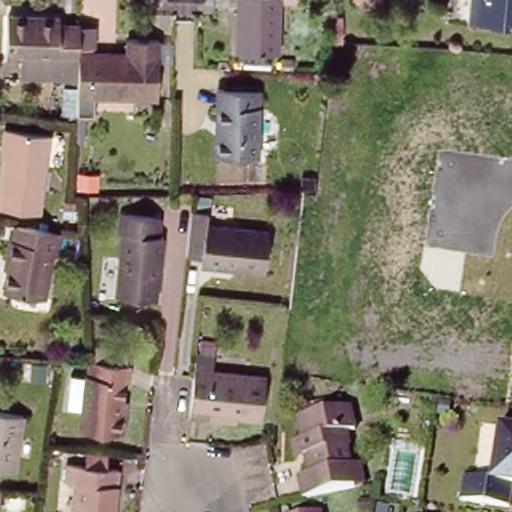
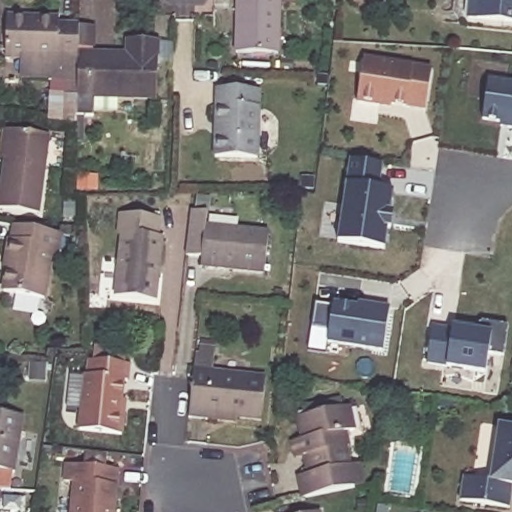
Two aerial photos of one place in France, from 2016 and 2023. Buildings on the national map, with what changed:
unchanged [(240,0),(282,0),(280,56),(238,56),(240,0)]
unchanged [(362,15),(362,5),(357,5),(357,0),(387,0),(386,16),(362,15)]
unchanged [(471,0),(512,0),(512,27),(470,22),(471,0)]
unchanged [(58,14),(58,20),(78,21),(78,24),(97,25),(97,56),(76,55),(75,80),(20,77),(20,59),(5,58),(5,12),(58,14)]
unchanged [(123,41),(155,43),(153,101),(75,100),(76,55),(123,56),(123,41)]
new [(425,111),(405,108),(390,106),(390,108),(357,102),(365,57),(414,65),(431,67),(425,111)]
new [(500,122),(482,120),(490,79),(512,82),(512,128),(499,126),(500,122)]
unchanged [(259,163),(216,162),(218,96),(260,96),(259,163)]
unchanged [(48,139),(37,215),(0,209),(0,198),(5,161),(0,161),(2,151),(4,132),(48,139)]
new [(337,243),(346,185),(350,159),(382,164),(378,190),(392,193),(389,212),(392,213),(389,230),(385,230),(382,250),(337,243)]
unchanged [(205,232),(270,241),(266,280),(201,272),(202,261),(188,261),(193,217),(207,218),(205,232)]
unchanged [(117,235),(120,218),(161,223),(160,239),(165,240),(157,304),(117,300),(123,236),(117,235)]
unchanged [(59,240),(55,264),(50,263),(42,306),(3,300),(8,268),(5,268),(7,248),(11,248),(13,232),(59,240)]
new [(381,351),(327,342),(328,328),(312,327),(316,304),(333,306),(333,303),(358,307),(359,303),(390,307),(381,351)]
new [(502,356),(487,351),(483,373),(447,367),(428,365),(430,325),(453,328),(477,331),(477,324),(482,322),(508,326),(502,356)]
unchanged [(121,416),(119,436),(77,432),(78,420),(67,419),(70,387),(81,388),(82,376),(85,377),(87,361),(103,364),(104,357),(114,358),(113,365),(127,366),(125,383),(121,383),(119,402),(122,402),(121,416)]
unchanged [(210,421),(195,419),(200,383),(201,370),(265,376),(259,421),(238,418),(237,424),(210,421)]
unchanged [(303,504),(299,481),(308,479),(304,461),(295,462),(292,446),(300,444),(304,444),(300,423),(307,421),(305,412),(345,405),(347,414),(352,413),(357,436),(347,438),(350,453),(347,454),(350,471),(360,469),(365,491),(355,493),(303,504)]
unchanged [(14,474),(0,473),(0,416),(19,418),(14,474)]
unchanged [(512,509),(465,503),(468,480),(492,484),(502,428),(512,429),(512,509)]
unchanged [(115,512),(74,512),(77,488),(67,487),(69,471),(86,473),(87,457),(108,460),(107,475),(119,476),(115,512)]

